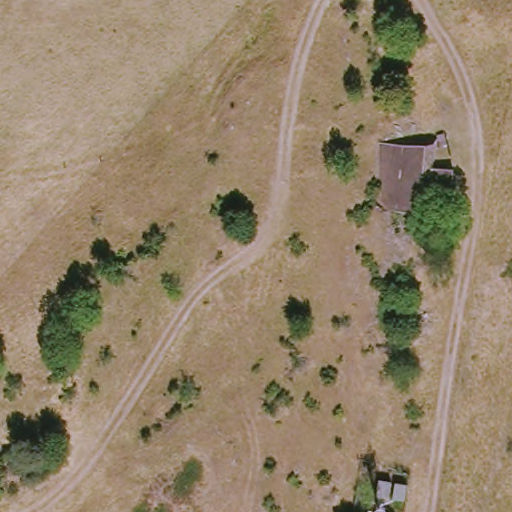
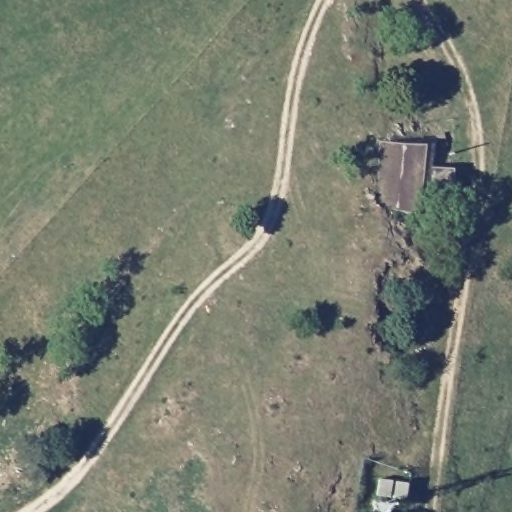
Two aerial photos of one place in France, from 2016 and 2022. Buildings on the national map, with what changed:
unchanged [(458,197),(429,192),(427,215),(384,216),(386,147),(432,149),(429,168),(453,171),(458,197)]

